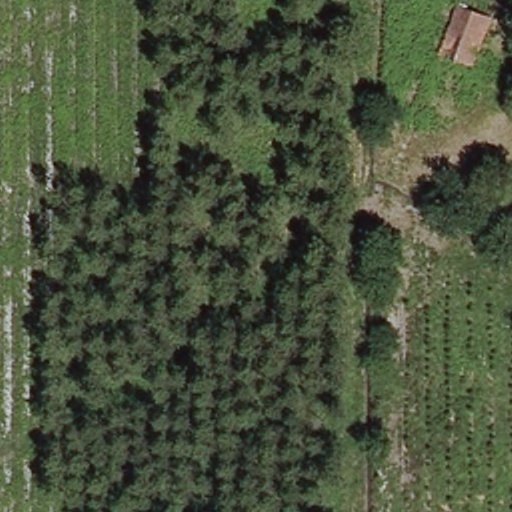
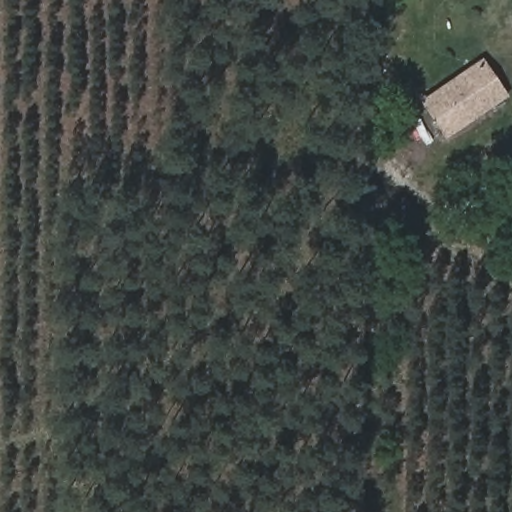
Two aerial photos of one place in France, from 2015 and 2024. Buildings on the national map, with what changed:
unchanged [(477,66),(431,51),(448,1),(492,17),(477,66)]
new [(483,57),(508,96),(445,138),(419,100),(483,57)]

